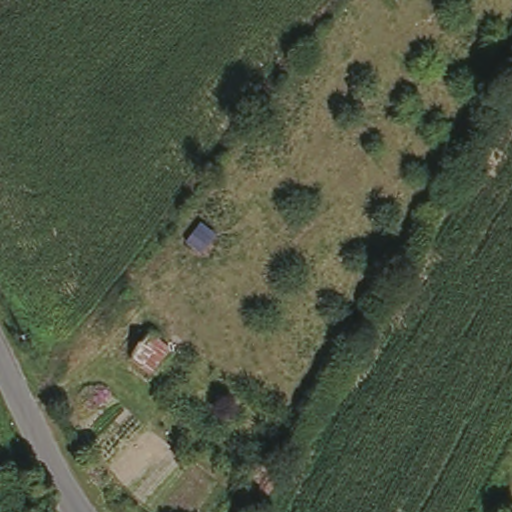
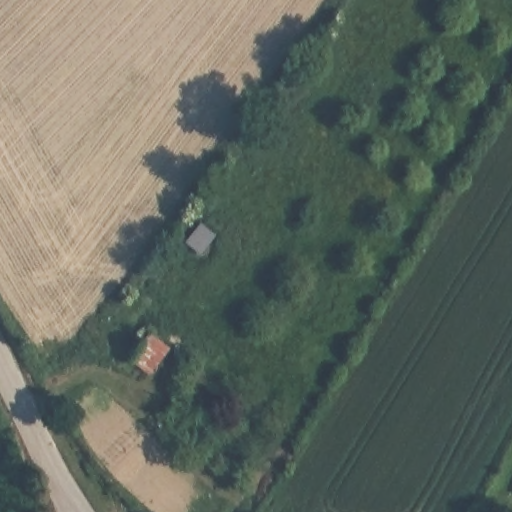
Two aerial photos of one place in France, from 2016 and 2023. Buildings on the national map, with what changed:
unchanged [(145,338),(164,353),(146,378),(102,345),(120,319),(145,338)]

